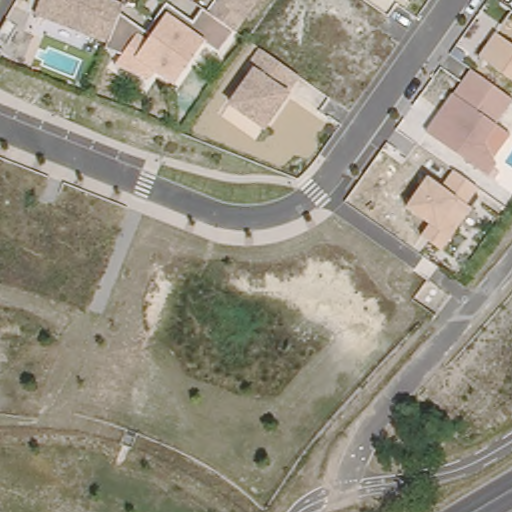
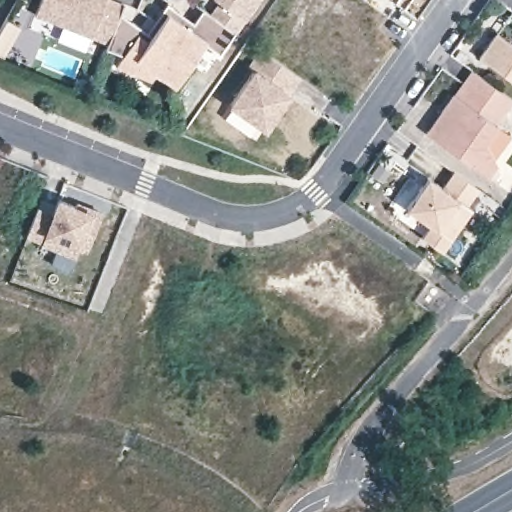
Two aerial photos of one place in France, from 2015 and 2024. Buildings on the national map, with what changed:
unchanged [(120,1),(117,11),(148,27),(168,1),(194,21),(204,8),(213,14),(235,29),(220,50),(208,41),(174,83),(146,64),(139,74),(120,59),(125,52),(105,46),(108,37),(40,11),(44,0),(117,0),(120,1)]
unchanged [(235,29),(213,14),(220,0),(260,0),(235,29)]
unchanged [(497,34),(512,45),(512,77),(483,56),(497,34)]
unchanged [(254,67),(248,63),(257,45),(297,74),(290,88),(296,92),(268,129),(230,107),(254,67)]
unchanged [(470,69),(510,99),(487,143),(501,162),(490,176),(430,132),(470,69)]
unchanged [(430,175),(446,186),(456,172),(476,186),(467,202),(475,209),(446,251),(423,237),(430,225),(409,207),(430,175)]
new [(52,215),(58,200),(75,207),(76,204),(85,208),(101,214),(87,250),(79,247),(75,256),(26,237),(37,209),(52,215)]

